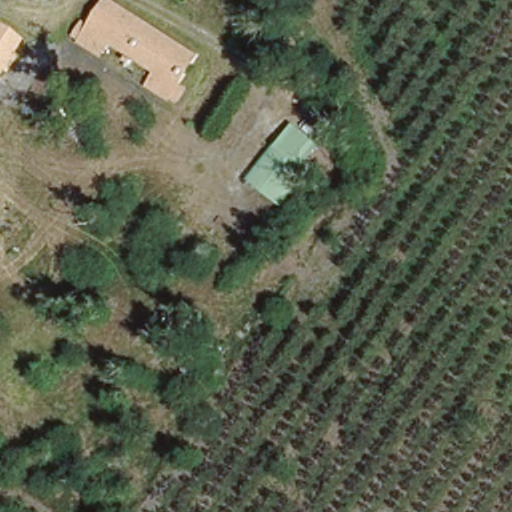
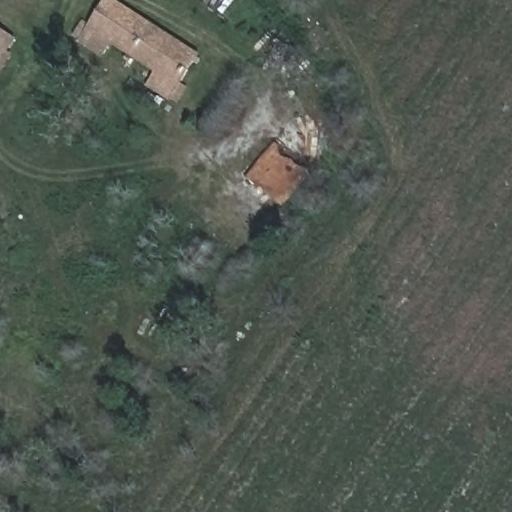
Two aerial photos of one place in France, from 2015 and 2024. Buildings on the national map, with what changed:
unchanged [(154,74),(114,46),(104,58),(74,38),(85,19),(93,24),(108,0),(115,0),(203,56),(184,84),(189,88),(179,106),(147,89),(154,74)]
unchanged [(12,52),(16,55),(4,76),(0,75),(0,29),(18,40),(12,52)]
unchanged [(324,145),(283,205),(250,179),(295,124),(324,145)]

